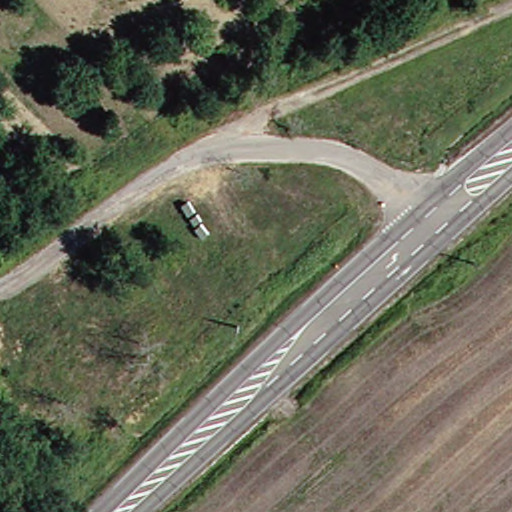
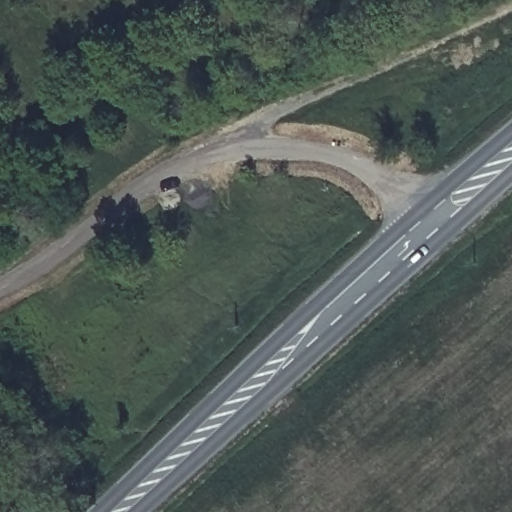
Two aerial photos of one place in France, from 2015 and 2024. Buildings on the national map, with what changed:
[]

